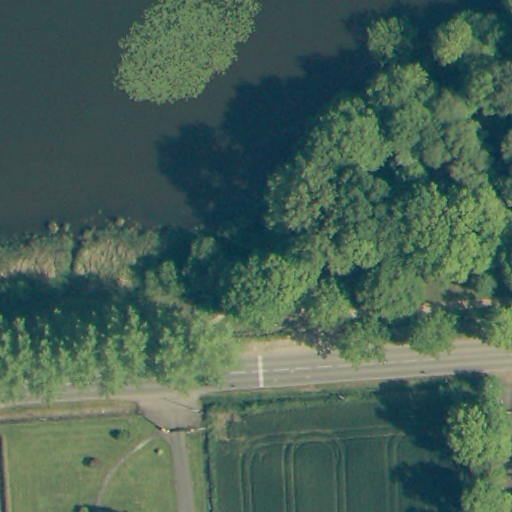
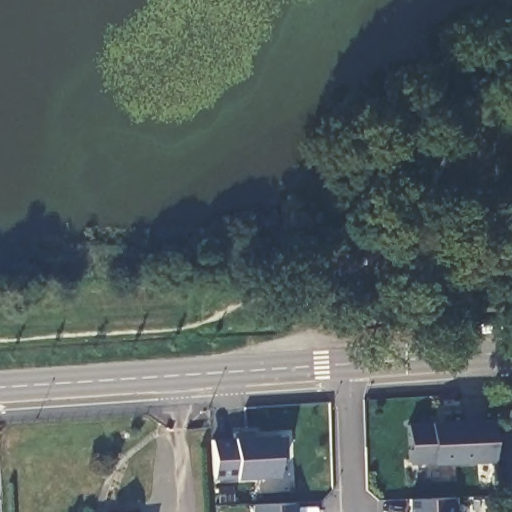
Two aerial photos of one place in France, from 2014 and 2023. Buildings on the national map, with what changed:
new [(431,461),(409,463),(407,425),(428,423),(428,420),(488,420),(492,461),(432,464),(431,461)]
new [(214,478),(211,437),(233,436),(274,434),(277,476),(236,478),(214,478)]
new [(455,497),(456,512),(409,512),(408,498),(455,497)]
new [(296,502),(297,512),(254,512),(253,504),(296,502)]
unchanged [(128,512),(120,512),(128,511),(128,512)]

